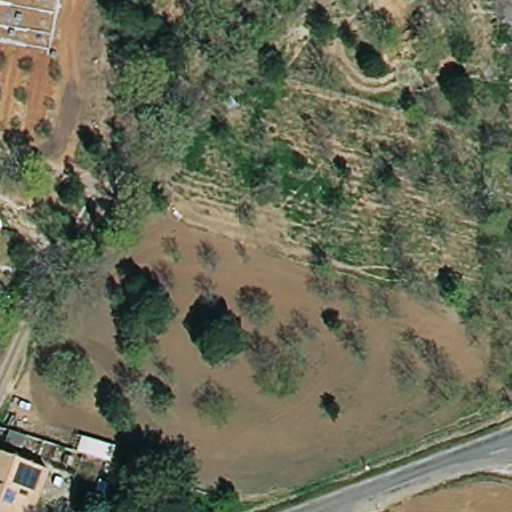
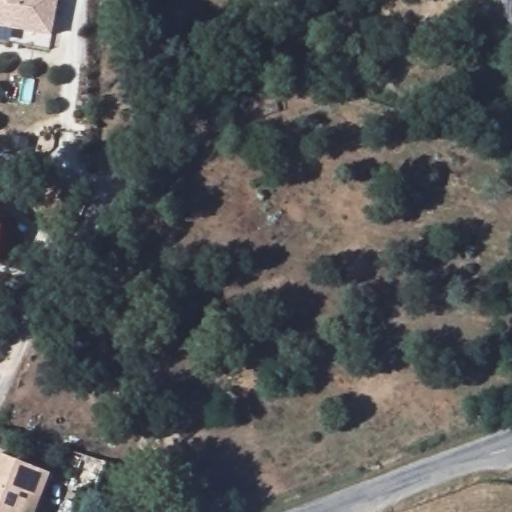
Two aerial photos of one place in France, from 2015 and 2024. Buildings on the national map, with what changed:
new [(51,36),(0,28),(0,0),(58,0),(51,36)]
unchanged [(1,227),(0,230),(0,226),(1,227)]
unchanged [(41,468),(53,472),(38,512),(0,512),(0,458),(2,453),(41,468)]

